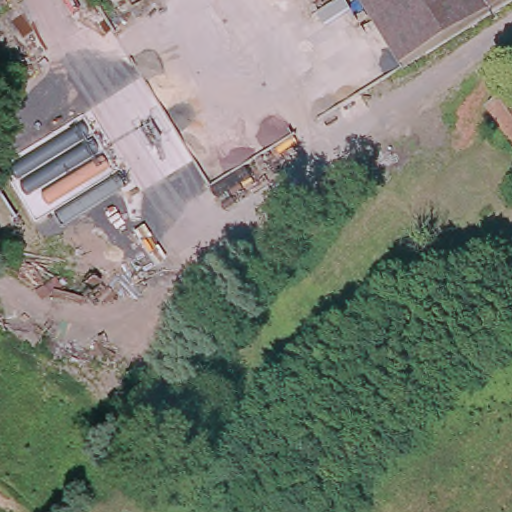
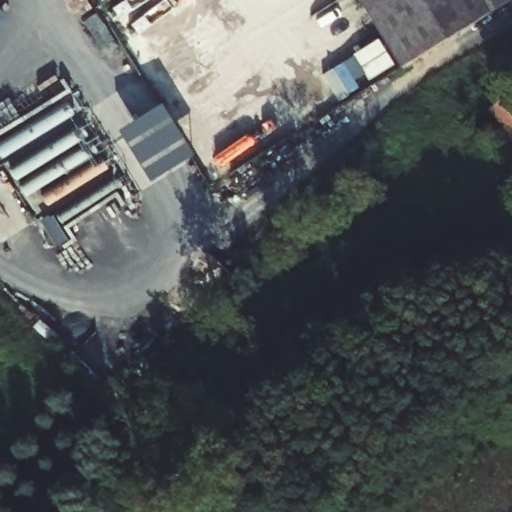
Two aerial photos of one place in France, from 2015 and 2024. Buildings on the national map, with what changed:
unchanged [(342,0),(334,5),(332,0),(342,0)]
unchanged [(363,0),(512,0),(512,2),(406,68),(363,0)]
new [(130,65),(117,73),(83,21),(96,13),(130,65)]
unchanged [(489,107),(509,93),(512,98),(512,139),(489,107)]
new [(119,132),(163,105),(194,156),(151,182),(119,132)]

